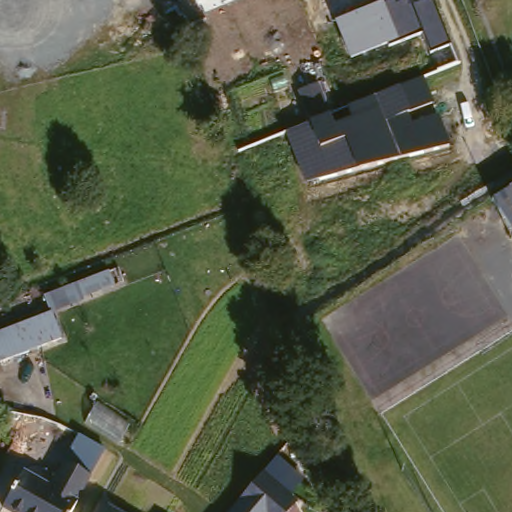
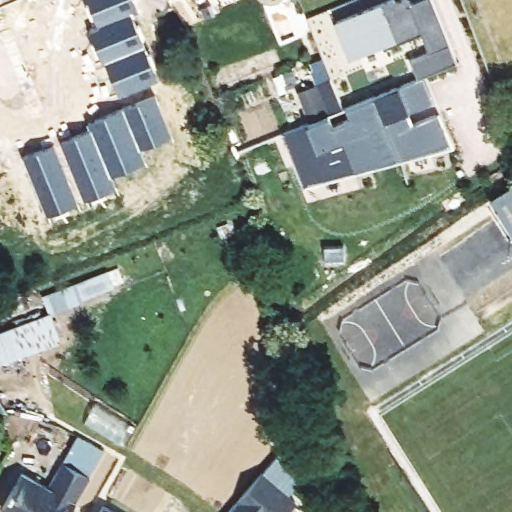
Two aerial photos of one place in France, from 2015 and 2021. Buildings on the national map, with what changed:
new [(137,13),(130,16),(158,84),(120,100),(103,62),(101,63),(88,31),(98,27),(87,0),(132,0),(137,13)]
unchanged [(335,20),(383,2),(384,4),(394,0),(396,4),(408,1),(411,6),(426,0),(433,0),(451,44),(430,51),(421,31),(350,57),(335,20)]
unchanged [(286,130),(425,78),(435,103),(407,113),(411,124),(439,114),(451,146),(305,183),(286,130)]
new [(317,86),(326,110),(307,117),(298,94),(317,86)]
new [(90,132),(88,126),(154,98),(171,138),(138,152),(143,165),(108,179),(112,191),(84,202),(60,144),(90,132)]
unchanged [(512,189),(512,229),(494,200),(512,189)]
unchanged [(59,337),(0,361),(0,334),(50,315),(59,337)]
unchanged [(305,480),(292,495),(300,503),(291,512),(229,512),(278,458),(305,480)]
unchanged [(45,488),(62,460),(86,474),(68,501),(74,505),(69,512),(5,512),(0,509),(0,502),(18,473),(45,488)]
unchanged [(119,512),(98,512),(103,504),(119,512)]

